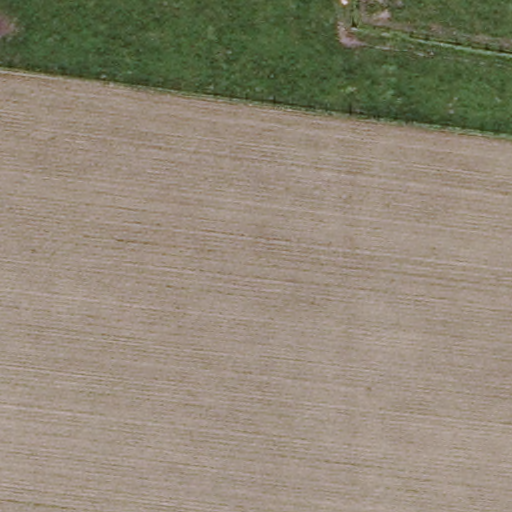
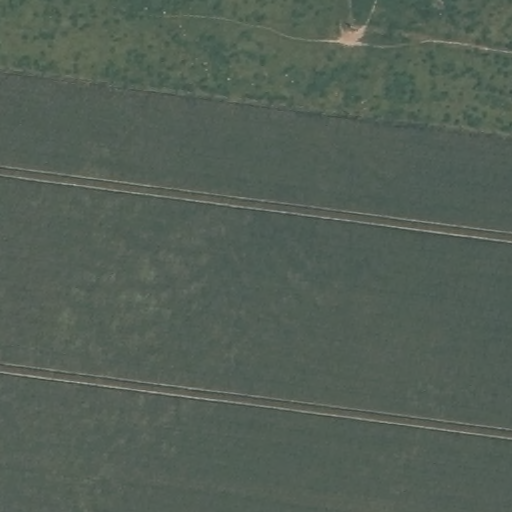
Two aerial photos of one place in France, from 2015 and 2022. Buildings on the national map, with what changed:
[]

